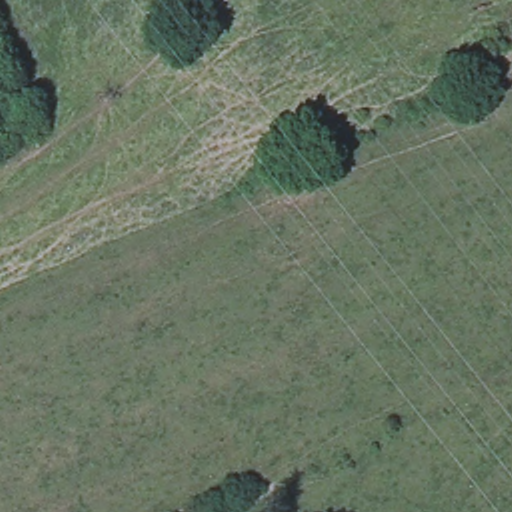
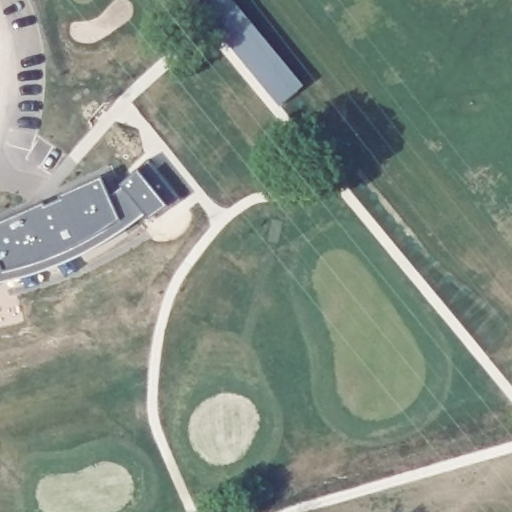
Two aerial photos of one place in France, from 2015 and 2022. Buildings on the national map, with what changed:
new [(302,87),(280,105),(218,30),(212,35),(191,8),(197,3),(201,0),(232,0),(302,87)]
new [(146,161),(178,198),(147,218),(120,186),(146,161)]
new [(0,271),(0,222),(43,203),(44,208),(59,201),(57,198),(100,179),(120,221),(59,256),(1,274),(0,271)]

